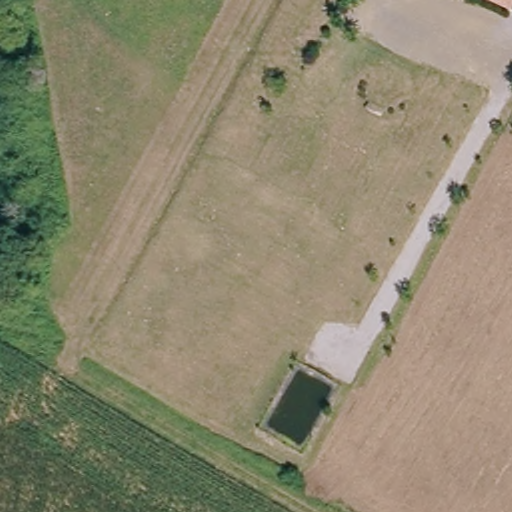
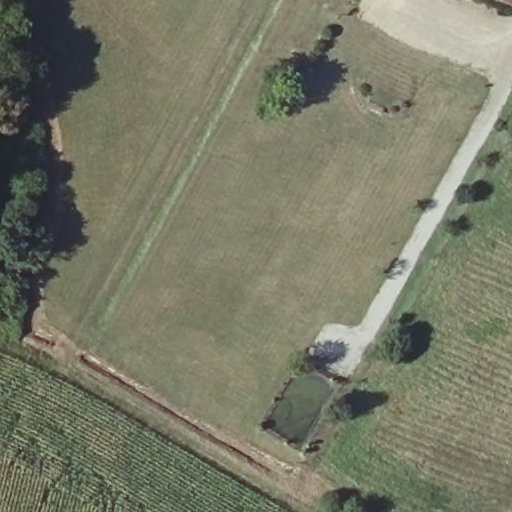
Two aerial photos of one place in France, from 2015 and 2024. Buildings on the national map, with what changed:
unchanged [(512,4),(504,0),(512,0),(512,4)]

